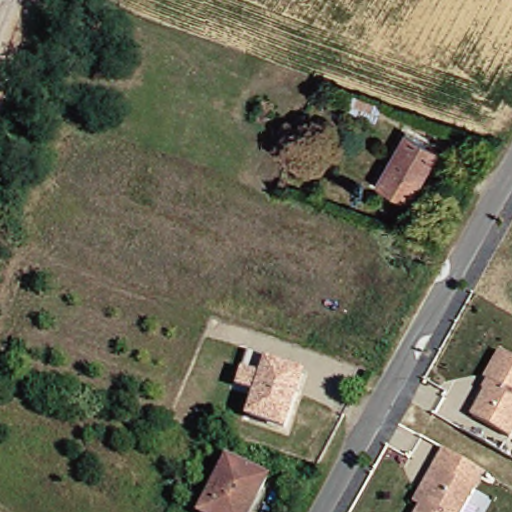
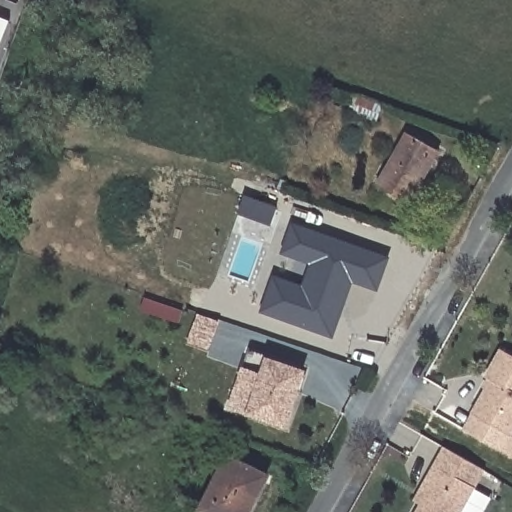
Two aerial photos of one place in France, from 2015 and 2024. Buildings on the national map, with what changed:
unchanged [(381,105),(376,121),(349,112),(354,96),(381,105)]
unchanged [(371,185),(401,133),(424,145),(436,152),(431,159),(406,203),(371,185)]
new [(244,195),(278,207),(272,226),(239,214),(244,195)]
new [(275,273),(302,284),(309,263),(281,253),(294,221),(391,257),(378,291),(354,283),(334,338),(260,312),(275,273)]
unchanged [(423,251),(418,264),(401,256),(406,243),(423,251)]
new [(199,313),(221,322),(209,353),(187,344),(199,313)]
unchanged [(280,426),(245,414),(253,390),(233,383),(245,348),(265,355),(263,361),(298,373),(280,426)]
unchanged [(509,436),(472,415),(491,381),(485,378),(501,350),(512,357),(512,431),(509,436)]
new [(509,436),(512,438),(512,458),(464,432),(472,415),(509,436)]
unchanged [(479,478),(461,512),(415,512),(429,486),(426,476),(438,455),(479,478)]
unchanged [(250,501),(246,499),(240,512),(198,512),(197,511),(223,458),(262,477),(250,501)]

